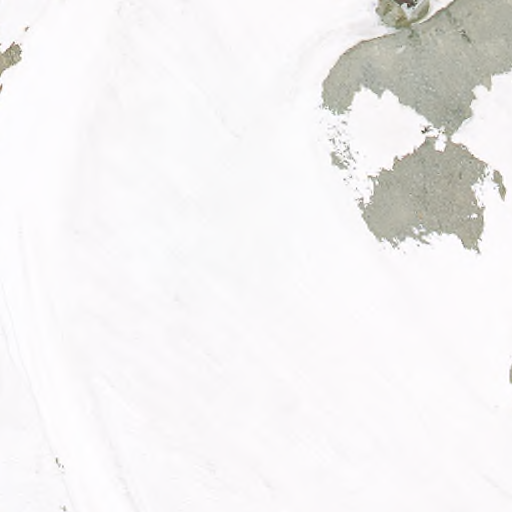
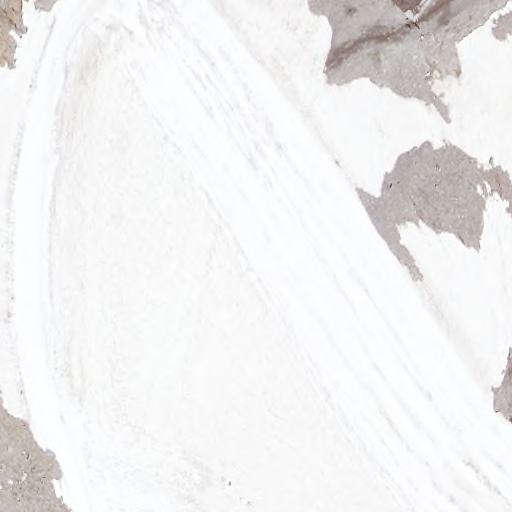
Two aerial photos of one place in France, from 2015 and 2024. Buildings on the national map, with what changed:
unchanged [(414,10),(401,0),(422,0),(414,10)]

